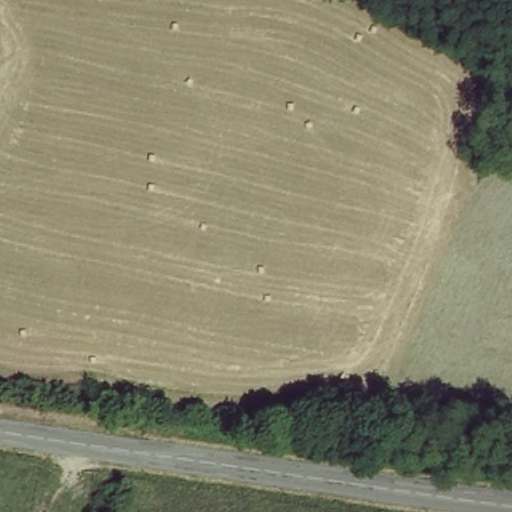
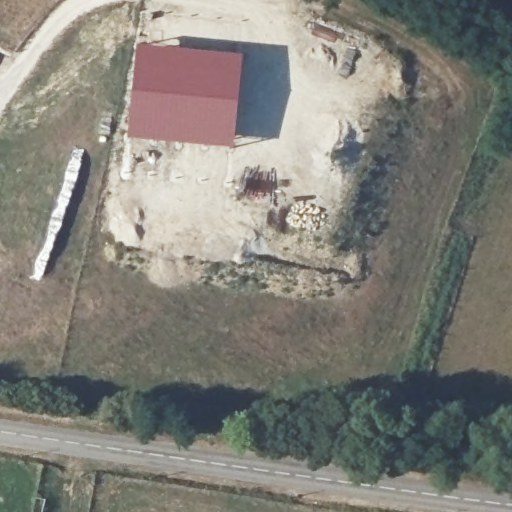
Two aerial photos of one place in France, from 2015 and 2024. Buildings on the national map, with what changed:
new [(134,44),(243,54),(233,149),(126,138),(134,44)]

